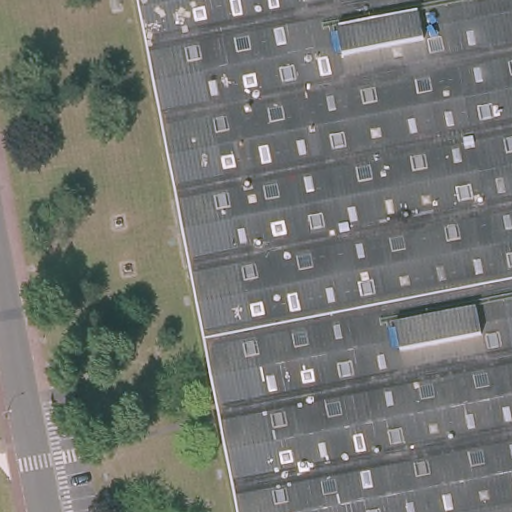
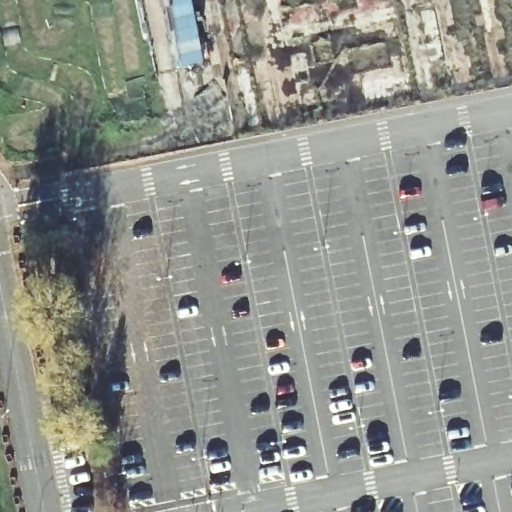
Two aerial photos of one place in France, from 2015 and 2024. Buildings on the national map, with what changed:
demolished [(127,0),(512,0),(512,512),(235,512),(127,0)]

